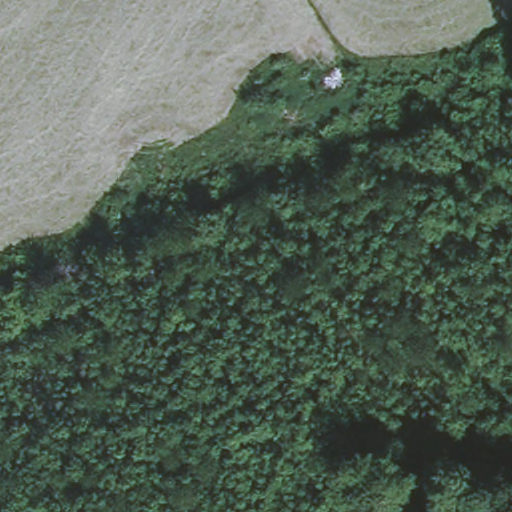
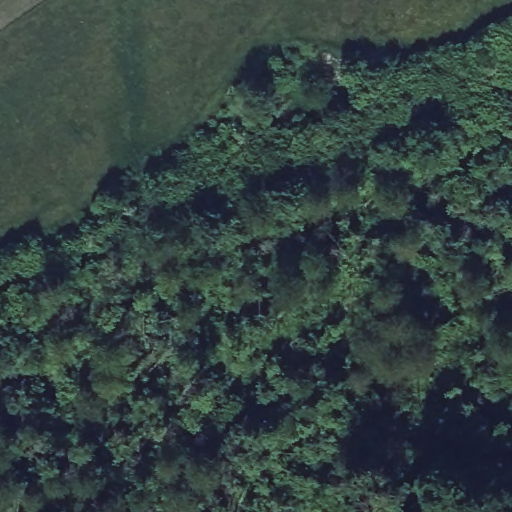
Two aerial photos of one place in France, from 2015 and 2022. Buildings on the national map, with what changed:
unchanged [(285,200),(260,210),(257,196),(282,186),(285,200)]

